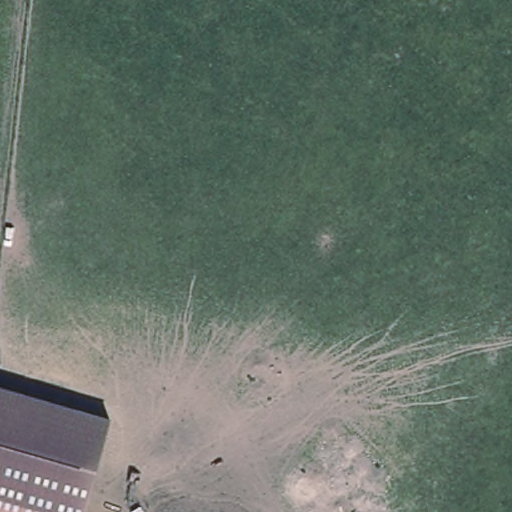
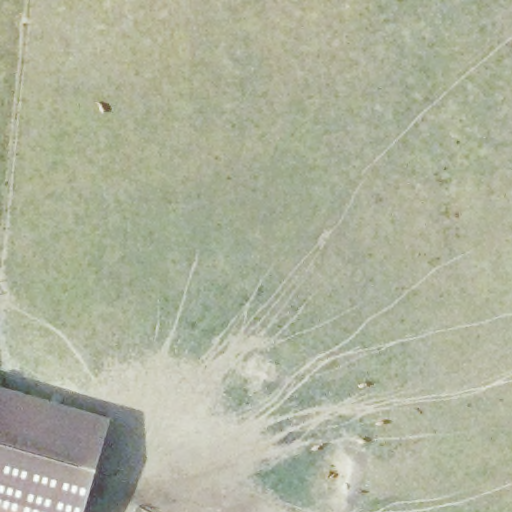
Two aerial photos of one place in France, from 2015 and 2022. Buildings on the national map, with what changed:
unchanged [(110,417),(84,512),(0,512),(0,386),(110,417)]

